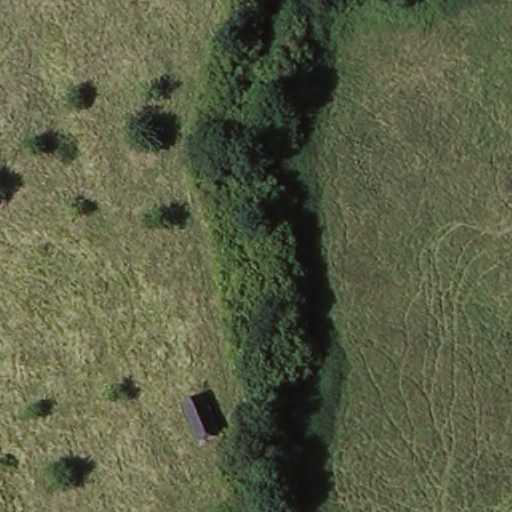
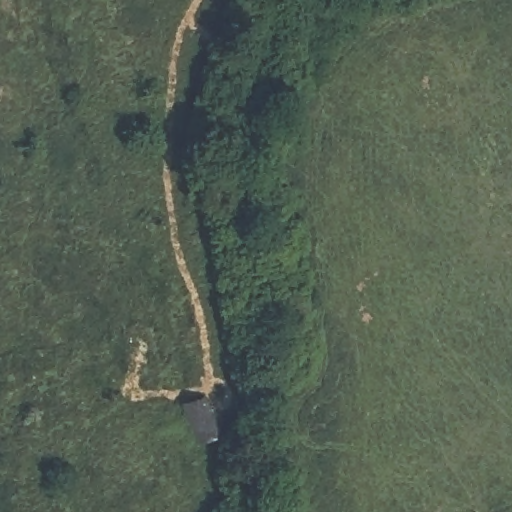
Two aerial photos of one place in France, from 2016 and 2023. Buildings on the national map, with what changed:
unchanged [(209,407),(221,441),(202,448),(191,413),(209,407)]

